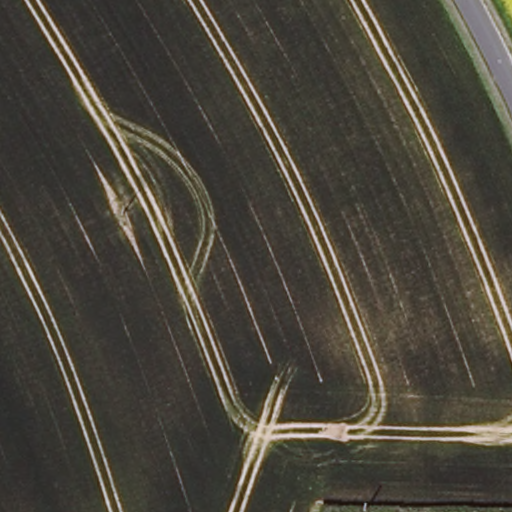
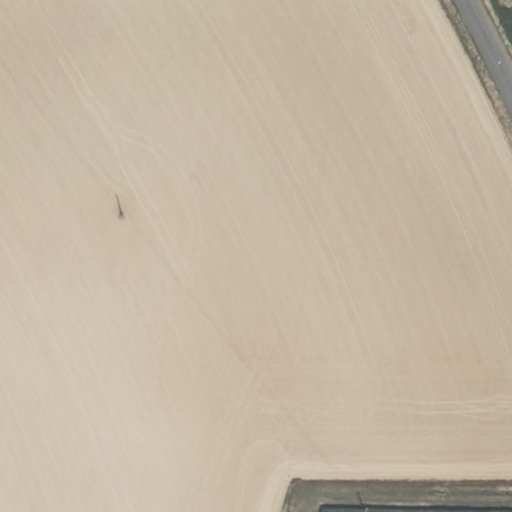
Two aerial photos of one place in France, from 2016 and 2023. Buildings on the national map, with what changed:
[]

